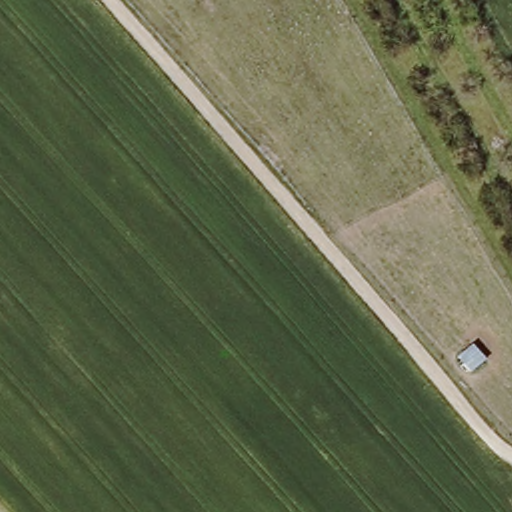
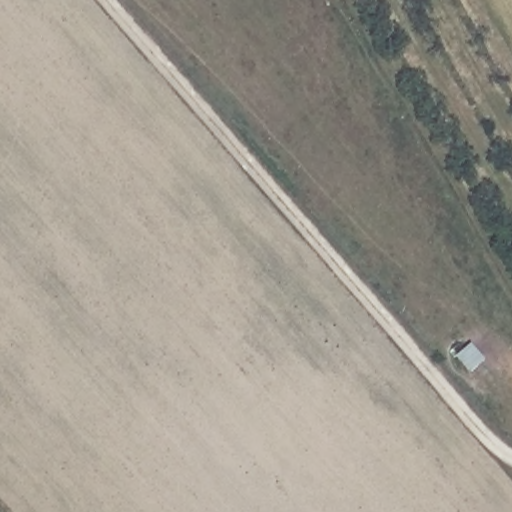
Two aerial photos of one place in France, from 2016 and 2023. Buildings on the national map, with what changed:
[]

